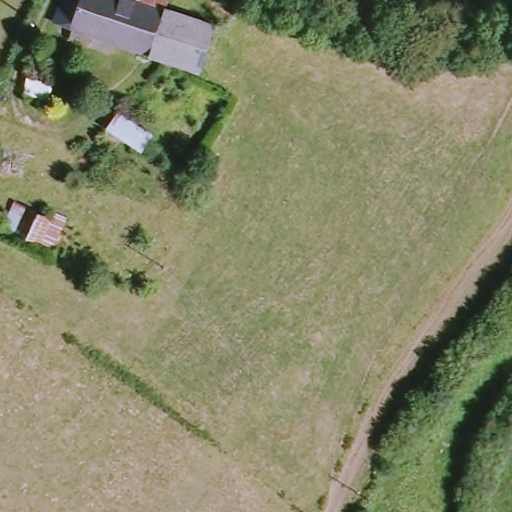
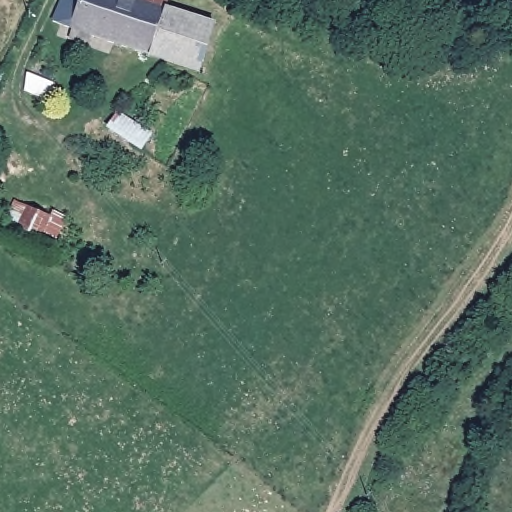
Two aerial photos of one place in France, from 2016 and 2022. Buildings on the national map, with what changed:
unchanged [(82,43),(84,36),(58,27),(71,0),(125,0),(144,7),(146,0),(174,0),(178,1),(174,17),(218,32),(205,77),(96,40),(93,48),(82,43)]
unchanged [(55,92),(33,83),(33,63),(61,74),(55,92)]
unchanged [(149,155),(138,177),(96,160),(110,128),(121,109),(159,135),(149,155)]
unchanged [(51,248),(3,224),(16,202),(53,219),(57,215),(66,220),(51,248)]

